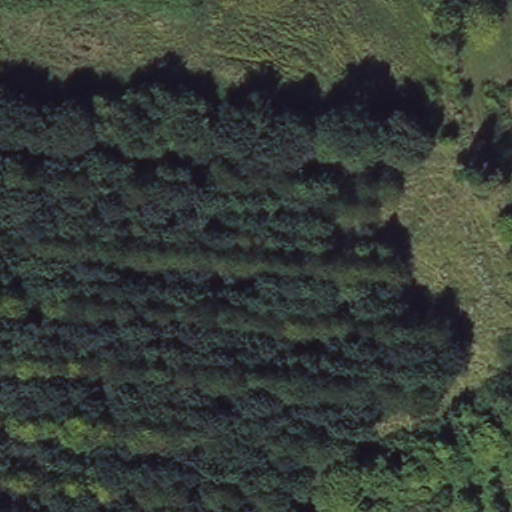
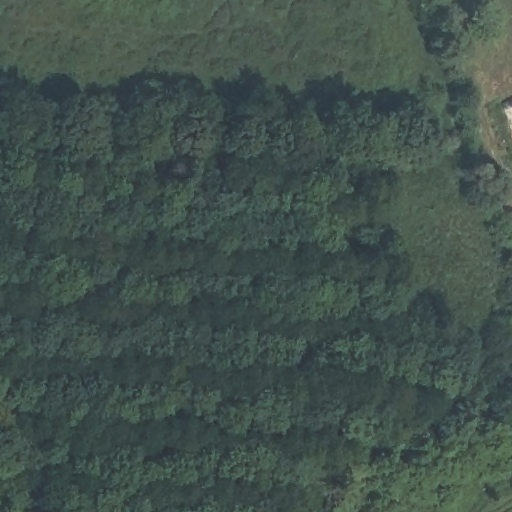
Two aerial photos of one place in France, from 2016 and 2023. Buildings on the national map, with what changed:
[]

